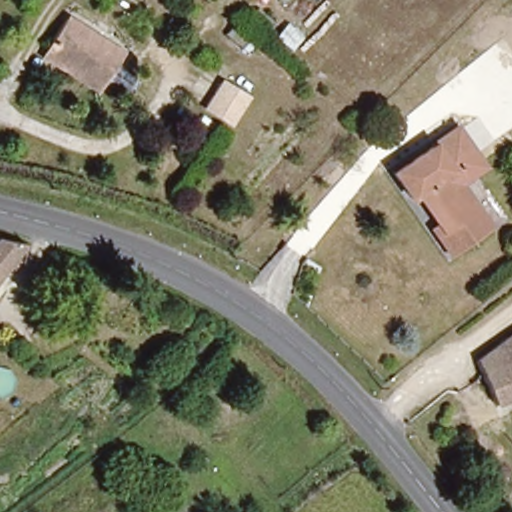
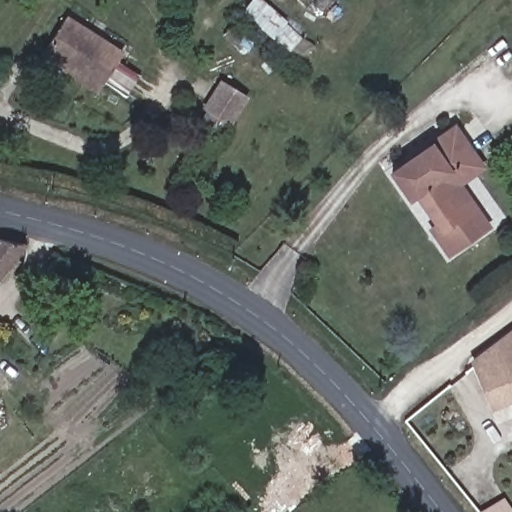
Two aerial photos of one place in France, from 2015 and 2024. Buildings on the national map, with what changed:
unchanged [(39,50),(59,17),(110,50),(88,85),(64,69),(66,66),(39,50)]
unchanged [(208,101),(222,79),(245,92),(231,115),(208,101)]
unchanged [(442,253),(426,229),(431,226),(409,194),(403,197),(385,171),(424,146),(421,142),(446,126),(465,154),(472,166),(450,181),(481,227),(442,253)]
unchanged [(22,248),(0,276),(0,242),(22,248)]
unchanged [(473,364),(512,335),(512,399),(492,407),(473,364)]
new [(512,509),(512,512),(484,512),(483,511),(505,497),(512,509)]

